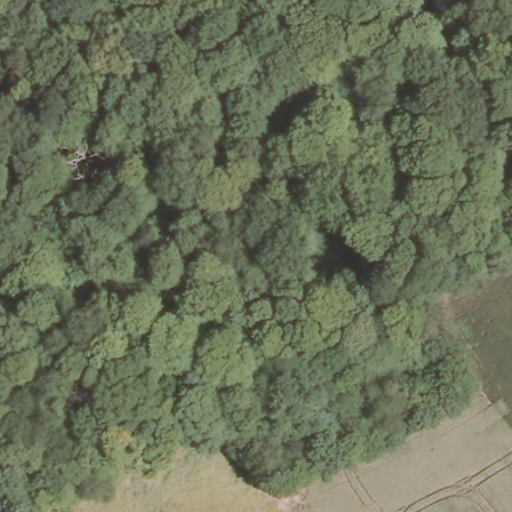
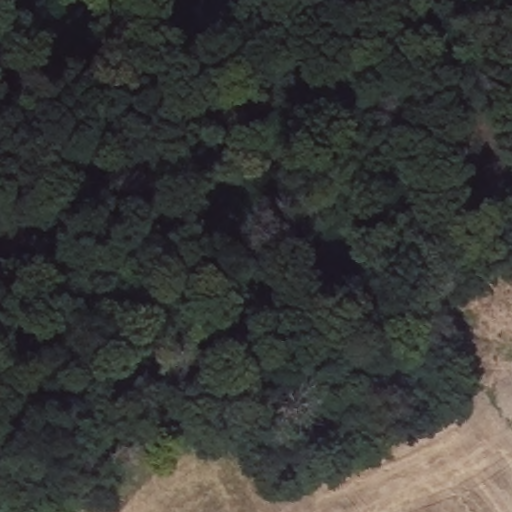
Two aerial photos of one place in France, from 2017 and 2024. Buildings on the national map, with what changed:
unchanged [(287,438),(322,417),(337,448),(302,468),(287,438)]

